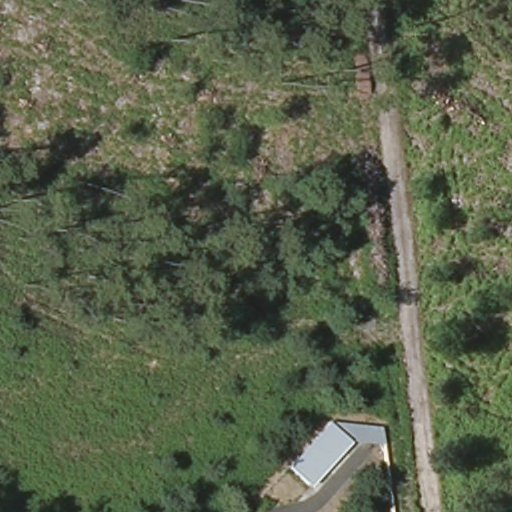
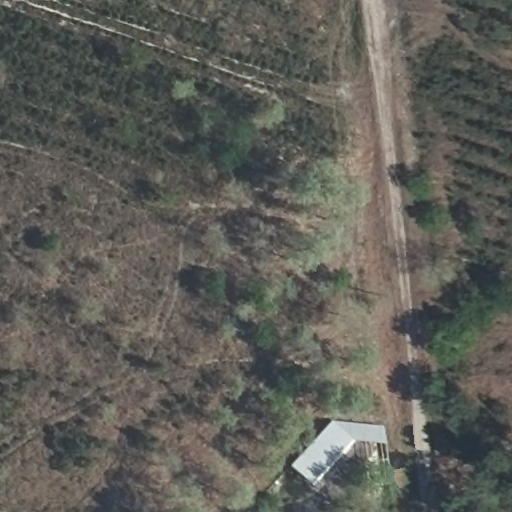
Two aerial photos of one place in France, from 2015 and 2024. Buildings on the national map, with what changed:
unchanged [(381,425),(383,446),(348,444),(307,487),(287,465),(327,420),(381,425)]

